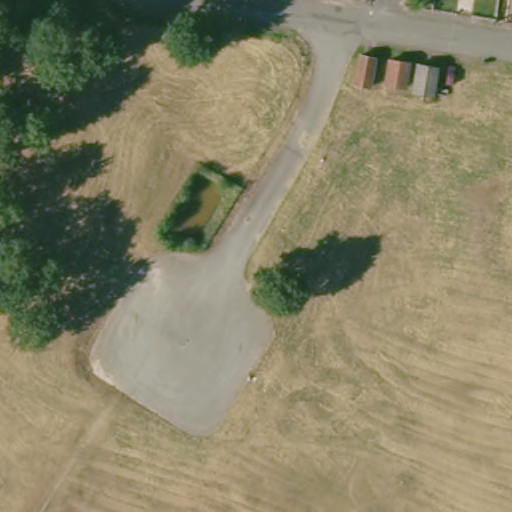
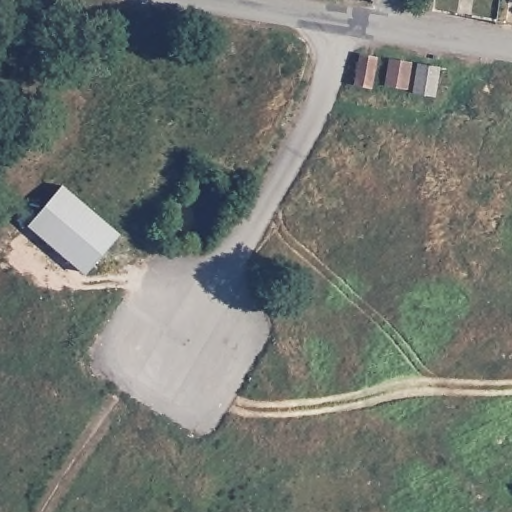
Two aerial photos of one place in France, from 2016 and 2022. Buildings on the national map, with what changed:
unchanged [(351,85),(357,52),(377,56),(371,88),(351,85)]
unchanged [(383,83),(386,58),(410,61),(405,88),(383,83)]
unchanged [(415,61),(438,66),(433,96),(411,91),(415,61)]
new [(65,187),(122,236),(85,275),(30,229),(65,187)]

